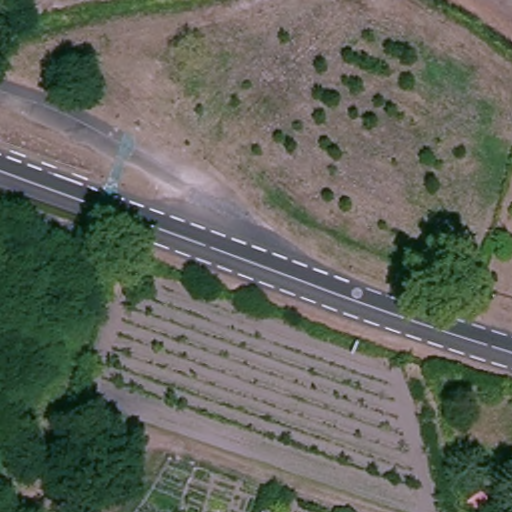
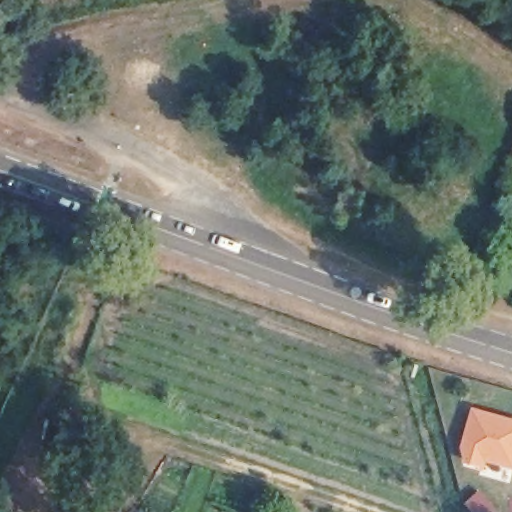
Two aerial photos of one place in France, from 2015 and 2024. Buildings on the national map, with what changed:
unchanged [(512,161),(512,172),(508,171),(511,164),(512,161)]
new [(512,419),(512,470),(487,463),(486,471),(467,466),(460,447),(472,407),(512,419)]

